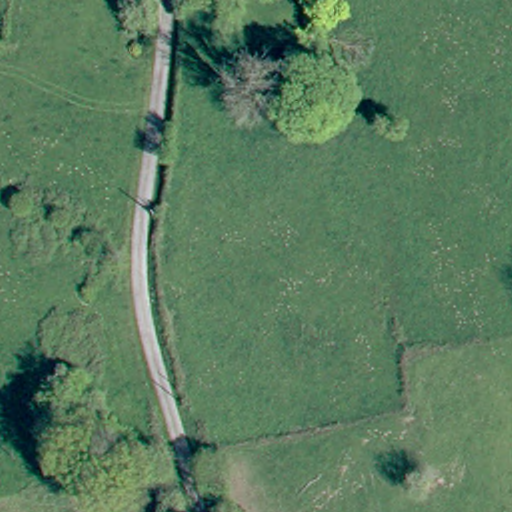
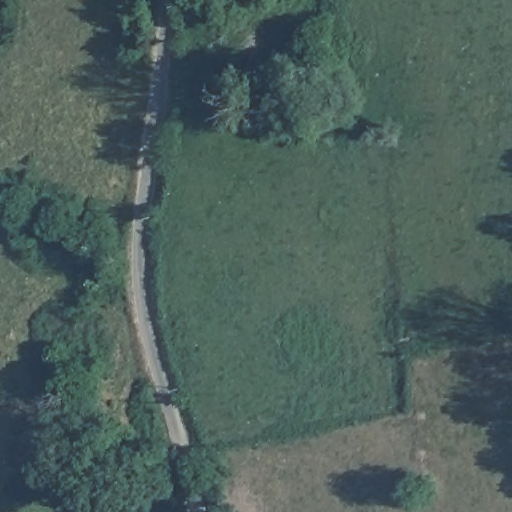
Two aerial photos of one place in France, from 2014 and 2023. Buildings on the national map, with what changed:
[]

